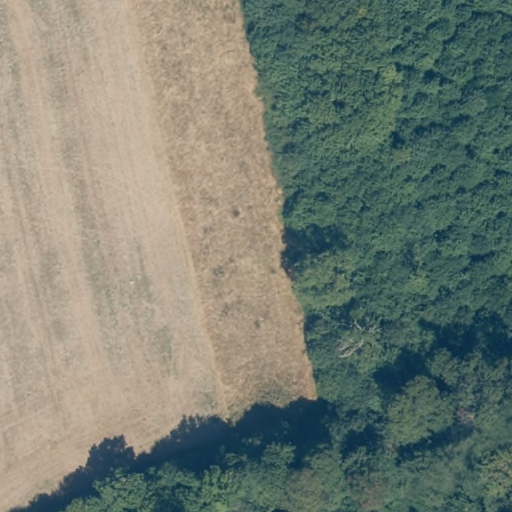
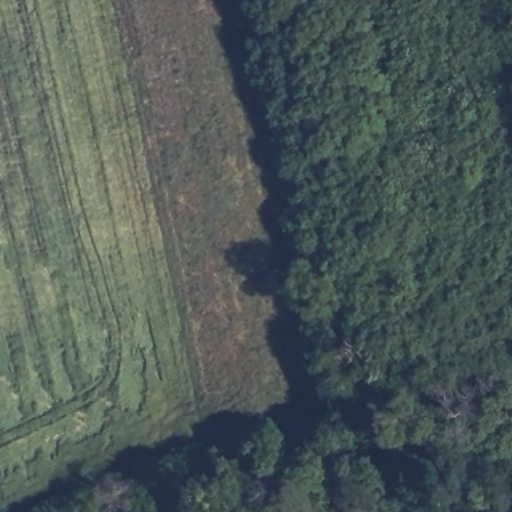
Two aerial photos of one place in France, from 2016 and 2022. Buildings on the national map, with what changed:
[]

